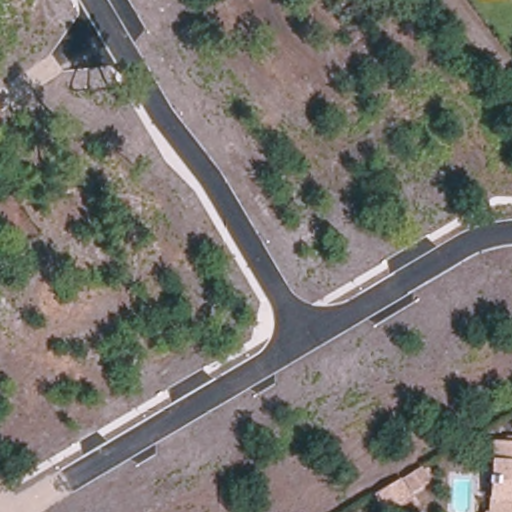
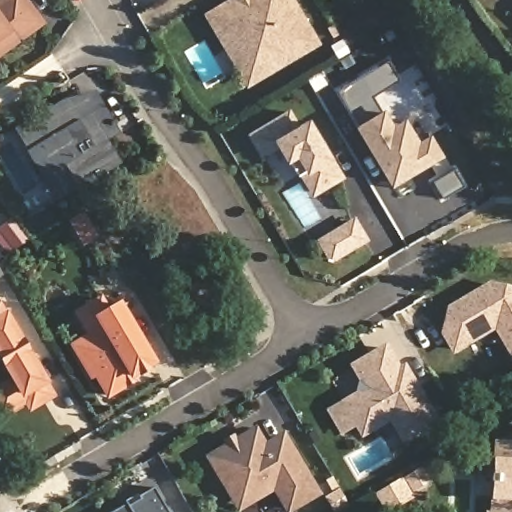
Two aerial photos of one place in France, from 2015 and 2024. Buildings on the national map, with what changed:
new [(0,56),(0,0),(29,0),(46,23),(0,56)]
new [(247,88),(203,13),(225,0),(296,0),(322,44),(247,88)]
new [(404,72),(388,81),(423,139),(435,133),(445,150),(398,179),(342,86),(395,55),(404,72)]
new [(120,135),(109,141),(122,164),(57,203),(43,180),(26,153),(14,132),(68,99),(96,93),(120,135)]
new [(300,123),(309,116),(332,158),(345,179),(313,197),(297,173),(290,159),(286,161),(277,146),(261,156),(247,134),(291,108),(300,123)]
new [(402,185),(398,179),(412,170),(416,178),(402,185)]
new [(349,223),(361,242),(330,260),(325,258),(315,244),(349,223)]
new [(494,330),(453,355),(442,338),(447,308),(488,282),(512,287),(512,361),(494,330)]
new [(146,372),(147,374),(140,379),(138,376),(135,378),(137,383),(107,402),(95,380),(92,382),(71,345),(87,335),(74,312),(102,297),(109,309),(120,302),(157,365),(146,372)]
new [(21,400),(0,412),(0,386),(9,381),(0,366),(0,319),(41,388),(45,396),(25,408),(21,400)]
new [(405,363),(438,421),(401,444),(390,423),(361,439),(356,429),(341,436),(326,409),(342,401),(355,394),(358,383),(349,366),(387,345),(399,366),(405,363)]
new [(283,431),(322,497),(294,512),(284,512),(274,493),(239,512),(238,512),(205,457),(224,445),(222,442),(234,435),(236,438),(256,426),(266,442),(283,431)]
unchanged [(494,489),(491,489),(491,482),(495,483),(497,449),(512,450),(512,512),(493,512),(494,489)]
unchanged [(420,474),(433,498),(419,507),(405,483),(420,474)]
unchanged [(400,486),(410,502),(392,512),(384,512),(377,500),(400,486)]
new [(127,506),(154,491),(167,512),(116,512),(127,506)]

